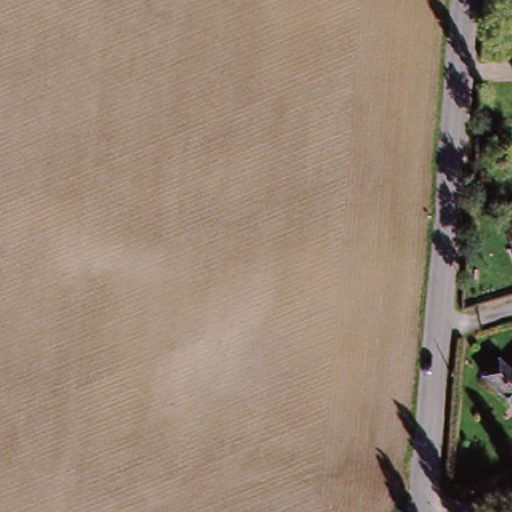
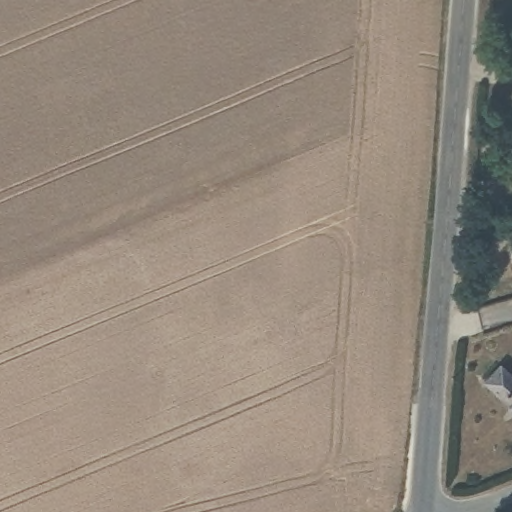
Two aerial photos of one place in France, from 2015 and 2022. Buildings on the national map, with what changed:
unchanged [(480,390),(495,374),(506,383),(512,377),(512,418),(480,390)]

